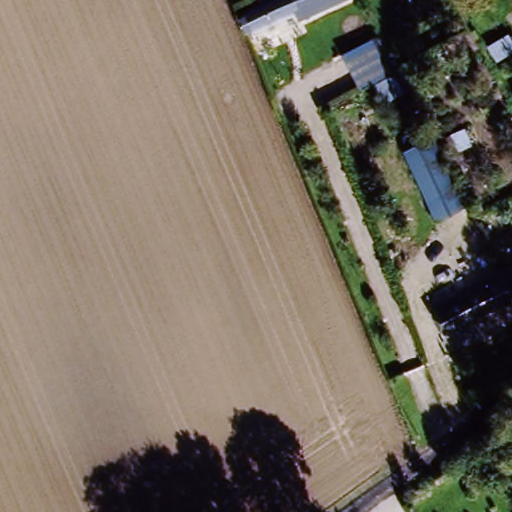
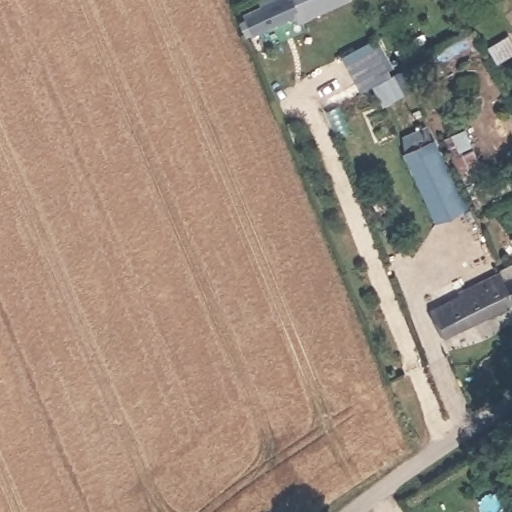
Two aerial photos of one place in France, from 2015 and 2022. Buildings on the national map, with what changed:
unchanged [(299,14),(261,32),(255,35),(242,14),(259,5),(256,0),(344,0),(302,20),(299,14)]
unchanged [(345,68),(372,54),(387,86),(360,101),(345,68)]
unchanged [(441,134),(473,200),(446,217),(410,152),(441,134)]
unchanged [(457,301),(501,278),(495,266),(512,258),(512,259),(512,304),(446,338),(431,309),(455,297),(457,301)]

